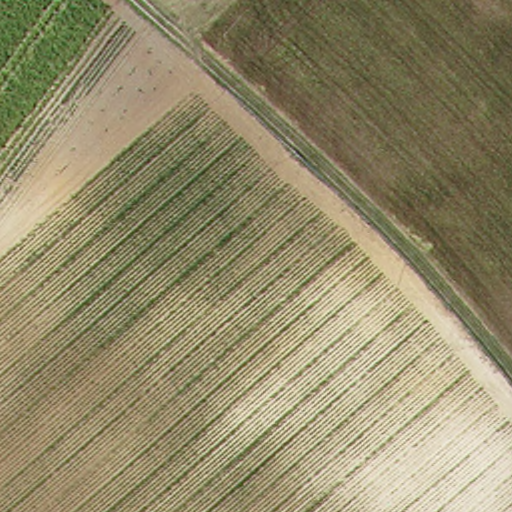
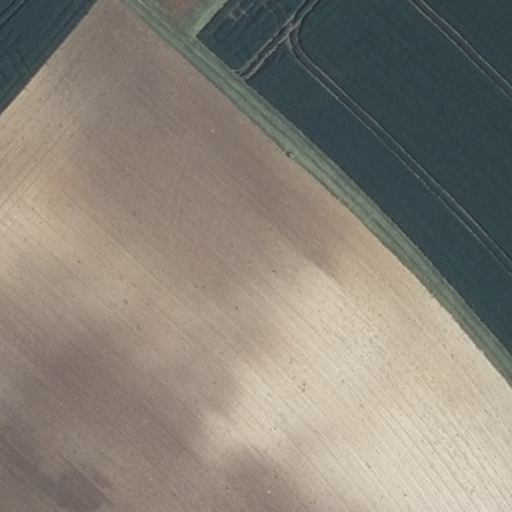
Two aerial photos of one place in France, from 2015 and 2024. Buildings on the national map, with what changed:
[]

